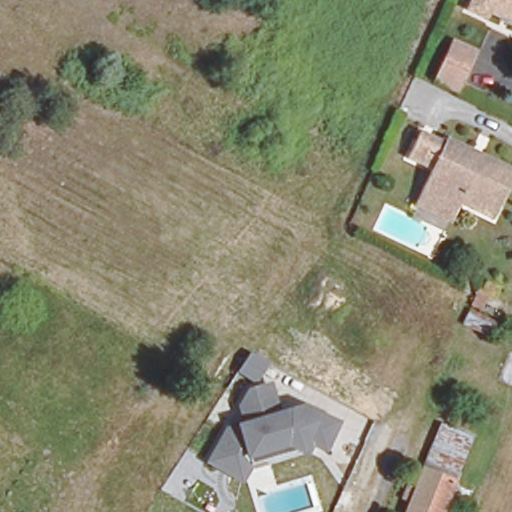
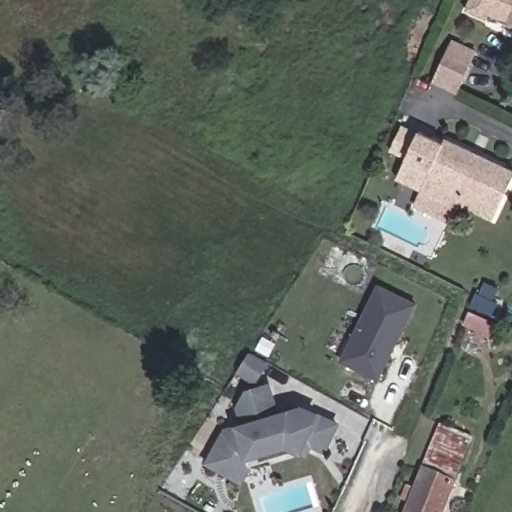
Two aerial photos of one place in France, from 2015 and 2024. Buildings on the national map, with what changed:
unchanged [(482,16),(479,22),(471,18),(457,11),(463,0),(512,0),(512,30),(482,16)]
unchanged [(427,86),(440,58),(447,44),(461,50),(474,57),(467,71),(454,99),(441,92),(427,86)]
unchanged [(439,140),(461,150),(448,179),(436,205),(414,194),(424,173),(407,165),(397,160),(410,133),(420,137),(437,145),(439,140)]
unchanged [(448,179),(461,150),(512,173),(512,184),(493,225),(457,208),(454,213),(436,205),(448,179)]
new [(379,285),(415,304),(378,379),(341,361),(379,285)]
unchanged [(499,303),(489,299),(494,288),(503,292),(499,303)]
unchanged [(499,329),(494,338),(464,323),(468,313),(499,329)]
unchanged [(232,425),(239,422),(237,409),(246,390),(272,384),(280,411),(303,406),(343,422),(327,458),(311,451),(256,466),(240,487),(204,467),(232,425)]
unchanged [(422,475),(439,433),(442,435),(446,425),(461,431),(457,440),(466,445),(449,486),(422,475)]
unchanged [(445,512),(405,512),(421,475),(422,475),(449,486),(455,489),(445,512)]

